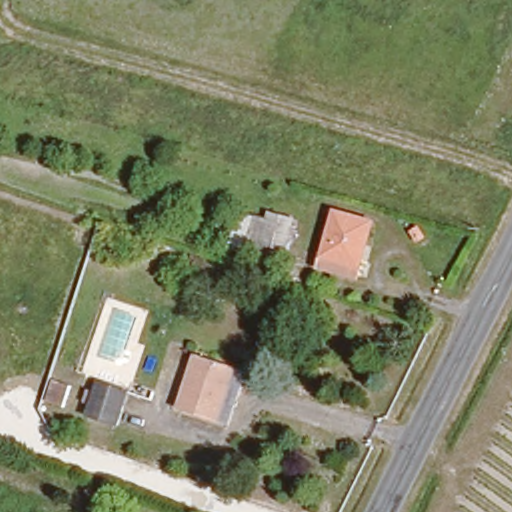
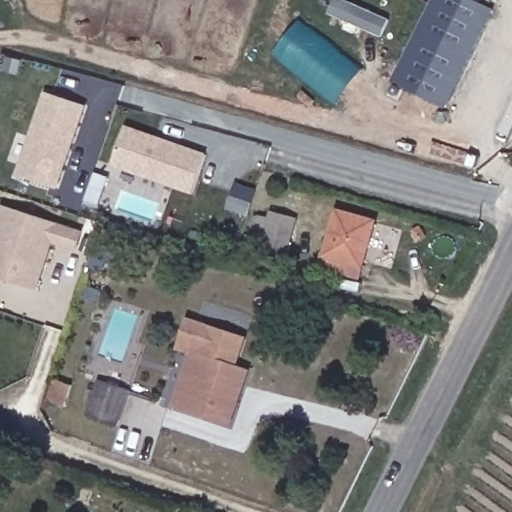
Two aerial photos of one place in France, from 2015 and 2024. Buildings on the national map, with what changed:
new [(443,109),(389,83),(430,0),(473,0),(492,10),(443,109)]
new [(301,18),(363,69),(333,103),(272,55),(301,18)]
new [(43,94),(84,108),(58,189),(15,175),(43,94)]
new [(111,166),(125,128),(205,156),(191,194),(111,166)]
new [(76,250),(51,242),(35,290),(0,278),(0,207),(81,234),(76,250)]
unchanged [(325,245),(339,208),(370,219),(352,273),(326,264),(332,247),(325,245)]
unchanged [(299,220),(285,257),(260,247),(274,211),(299,220)]
new [(230,426),(216,420),(179,407),(171,404),(188,355),(176,350),(186,318),(247,338),(235,368),(248,371),(230,426)]
demolished [(198,354),(235,368),(216,420),(179,407),(198,354)]
unchanged [(102,378),(128,389),(114,426),(88,416),(102,378)]

